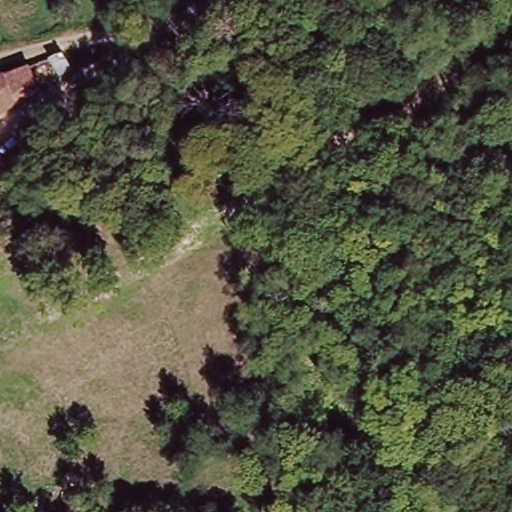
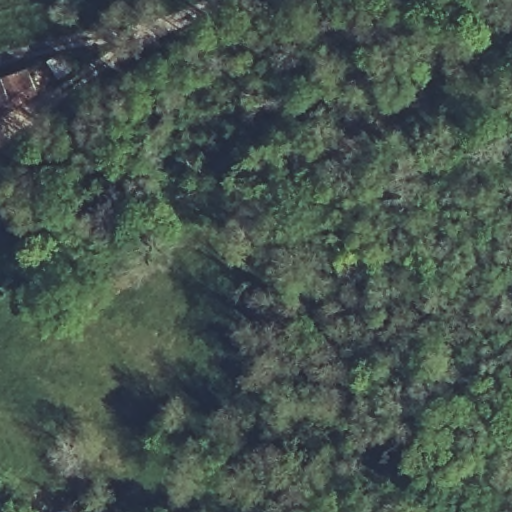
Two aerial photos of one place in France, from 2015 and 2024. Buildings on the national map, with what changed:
unchanged [(47,92),(0,121),(0,81),(35,68),(47,92)]

